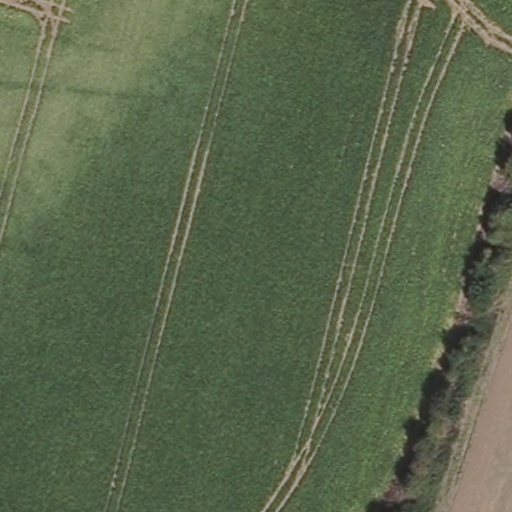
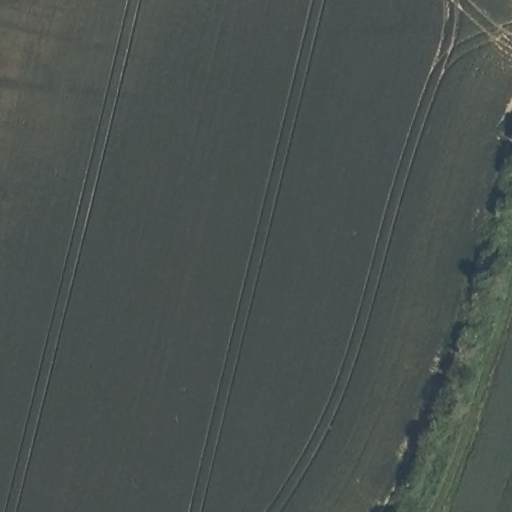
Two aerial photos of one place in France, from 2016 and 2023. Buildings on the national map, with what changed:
[]

